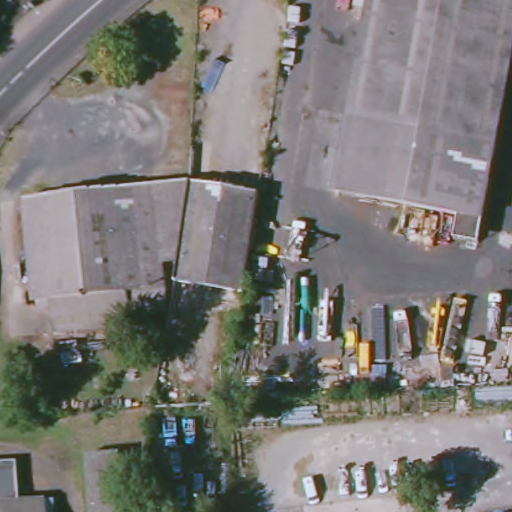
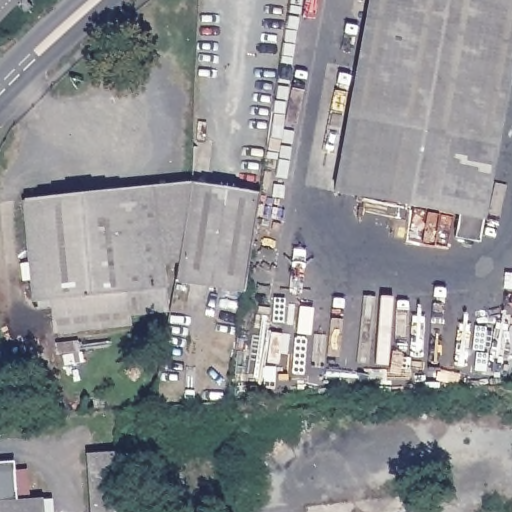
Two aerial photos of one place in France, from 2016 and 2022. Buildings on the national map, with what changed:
unchanged [(366,0),(512,0),(512,28),(478,219),(474,242),(449,238),(454,214),(331,192),(366,0)]
unchanged [(175,260),(158,262),(163,309),(124,314),(124,323),(49,332),(46,298),(30,300),(19,200),(187,181),(175,260)]
unchanged [(175,260),(187,181),(255,192),(239,291),(171,280),(175,260)]
unchanged [(86,453),(121,451),(125,512),(90,512),(86,453)]
unchanged [(14,462),(17,502),(42,500),(43,512),(0,512),(0,463),(14,462)]

